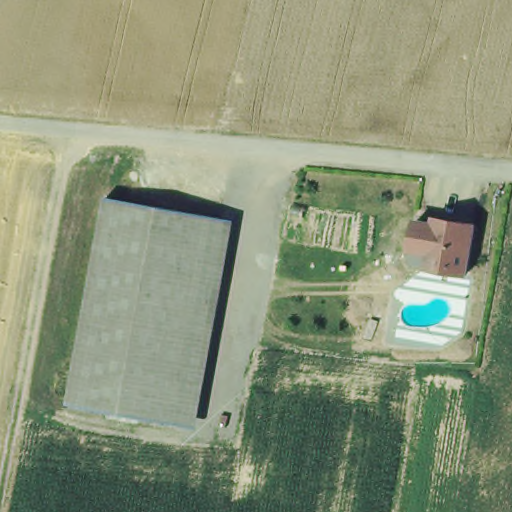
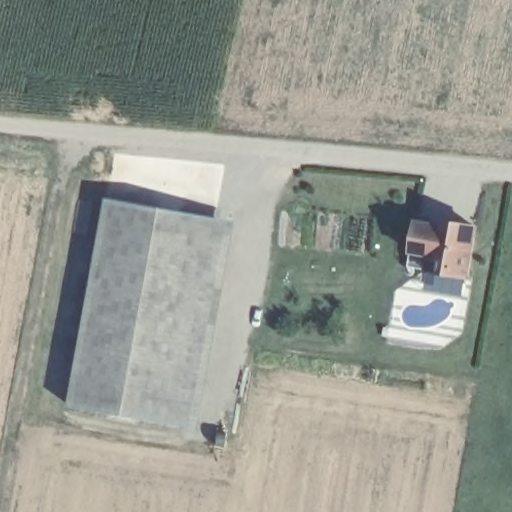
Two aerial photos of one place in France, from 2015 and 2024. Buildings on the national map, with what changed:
unchanged [(156,206),(215,217),(177,424),(119,414),(68,405),(106,197),(156,206)]
unchanged [(471,275),(432,269),(435,254),(416,250),(421,222),(440,225),(440,219),(480,225),(471,275)]

